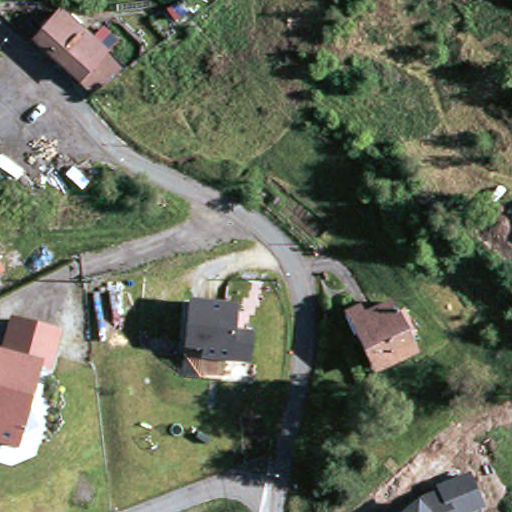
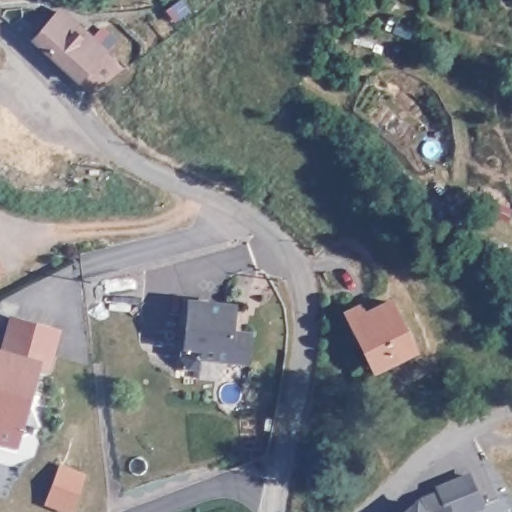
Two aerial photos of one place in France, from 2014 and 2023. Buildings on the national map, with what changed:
unchanged [(35,16),(30,12),(39,2),(42,5),(46,2),(49,5),(50,4),(112,59),(80,83),(20,30),(35,16)]
new [(492,200),(511,210),(505,220),(486,210),(492,200)]
unchanged [(200,356),(201,348),(184,346),(188,300),(235,305),(233,319),(232,331),(249,332),(246,361),(200,356)]
unchanged [(355,335),(345,314),(360,307),(364,315),(393,301),(415,348),(379,364),(370,369),(355,335)]
unchanged [(0,440),(0,351),(2,352),(12,317),(57,330),(48,364),(38,362),(20,427),(15,444),(0,440)]
new [(86,474),(73,512),(68,512),(45,505),(60,466),(86,474)]
unchanged [(478,512),(400,512),(413,500),(436,489),(435,485),(470,472),(485,509),(478,512)]

